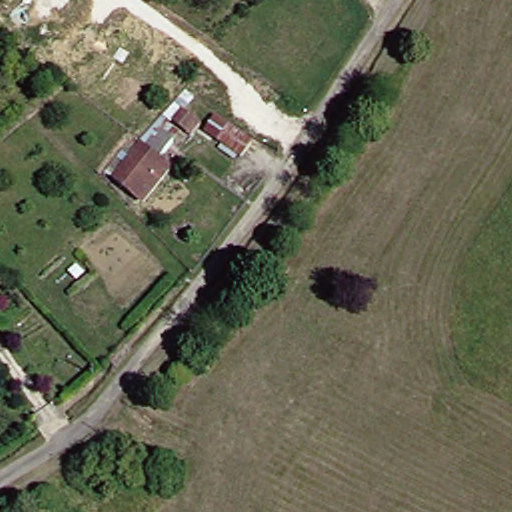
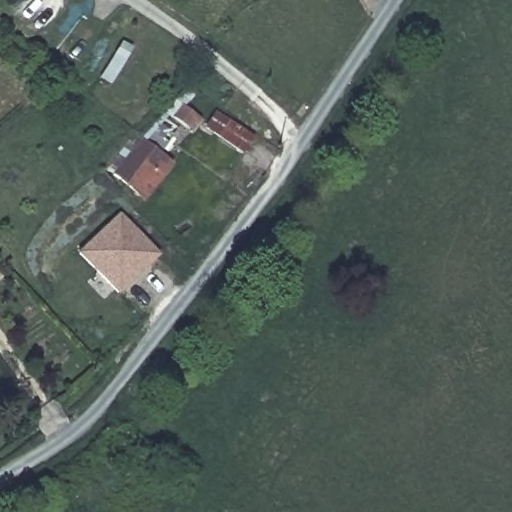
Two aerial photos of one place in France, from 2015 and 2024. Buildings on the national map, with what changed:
unchanged [(175,128),(162,117),(172,106),(185,116),(190,120),(180,132),(175,128)]
unchanged [(231,152),(196,127),(205,113),(241,137),(231,152)]
unchanged [(151,152),(133,137),(151,115),(169,129),(151,152)]
unchanged [(133,201),(104,175),(130,141),(160,166),(133,201)]
new [(158,257),(118,293),(81,254),(121,216),(158,257)]

